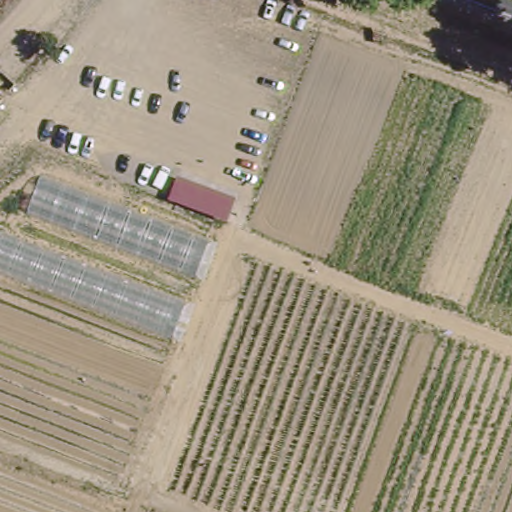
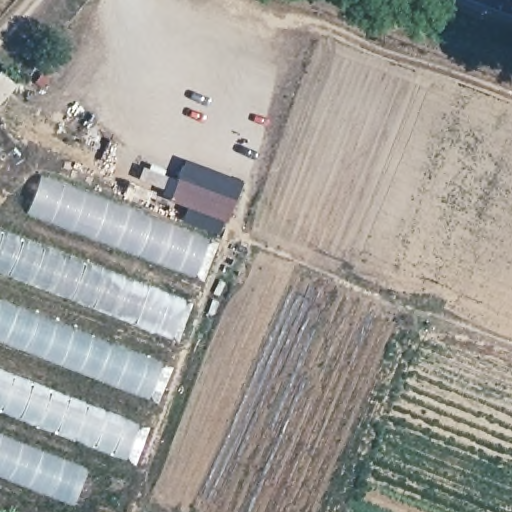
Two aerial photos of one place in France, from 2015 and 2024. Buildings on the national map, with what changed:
unchanged [(202,281),(27,215),(41,177),(217,242),(202,281)]
unchanged [(235,198),(227,223),(170,203),(178,178),(235,198)]
unchanged [(0,274),(0,229),(192,303),(178,344),(0,274)]
new [(0,303),(162,364),(149,399),(0,342),(0,303)]
new [(0,372),(139,425),(125,462),(0,413),(0,372)]
new [(0,437),(88,472),(75,509),(0,479),(0,437)]

